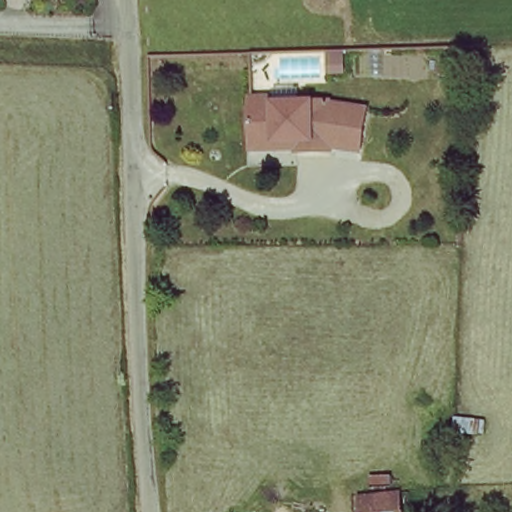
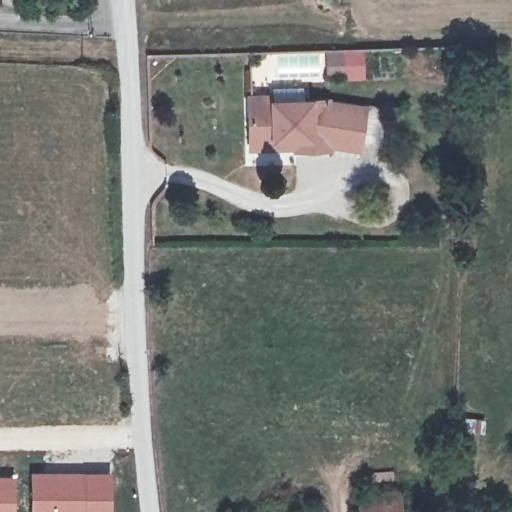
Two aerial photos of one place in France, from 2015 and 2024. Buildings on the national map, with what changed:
unchanged [(249,136),(247,87),(275,86),(276,94),(328,92),(365,104),(360,146),(330,143),(331,147),(295,149),(295,145),(249,146),(249,136)]
new [(115,472),(115,512),(30,512),(30,470),(115,472)]
new [(18,476),(17,512),(0,512),(0,476),(18,476)]
unchanged [(365,512),(360,496),(402,485),(405,512),(365,512)]

